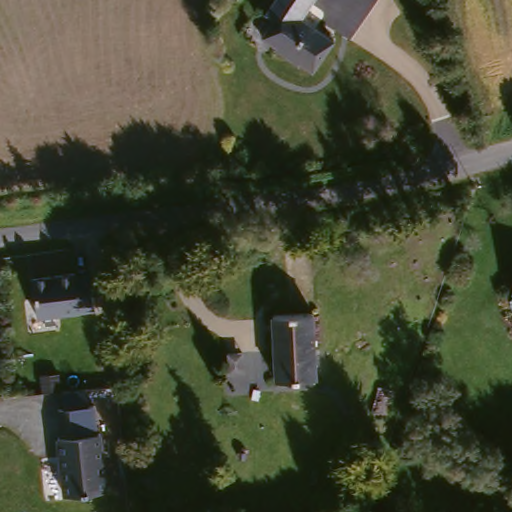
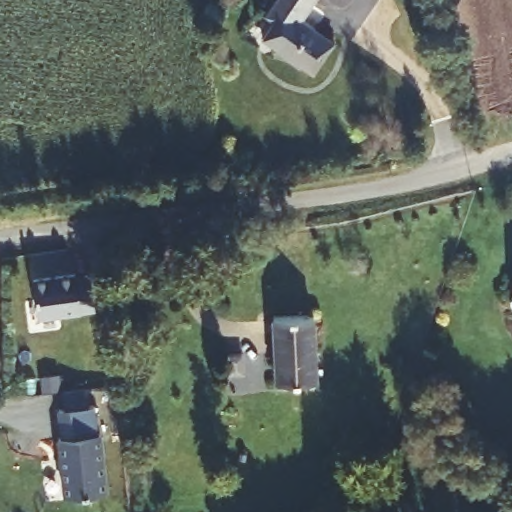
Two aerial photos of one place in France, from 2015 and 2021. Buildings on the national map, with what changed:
unchanged [(329,49),(308,79),(258,44),(270,27),(261,21),(276,0),(313,0),(295,25),(329,49)]
unchanged [(76,273),(77,277),(92,275),(96,311),(39,317),(34,277),(76,273)]
unchanged [(511,310),(510,306),(511,302),(512,299),(512,313),(511,310)]
unchanged [(310,312),(315,377),(274,379),(270,315),(310,312)]
unchanged [(66,391),(86,389),(87,404),(94,404),(95,433),(100,433),(104,492),(61,494),(57,435),(61,435),(59,406),(67,405),(66,391)]

